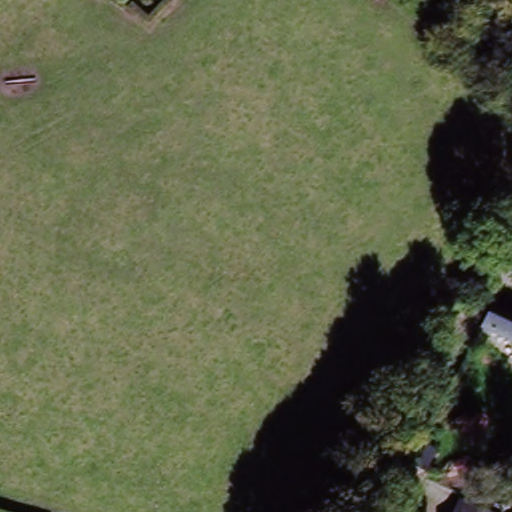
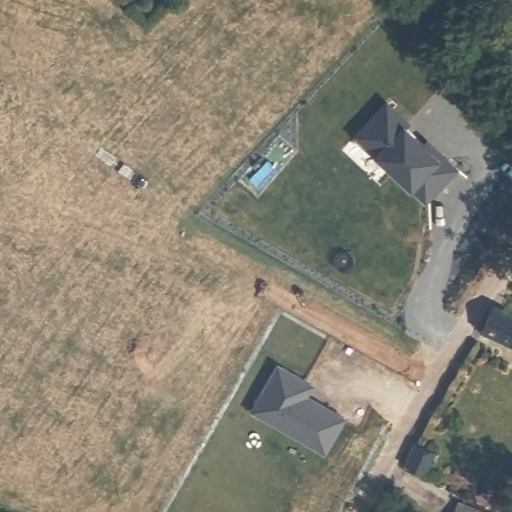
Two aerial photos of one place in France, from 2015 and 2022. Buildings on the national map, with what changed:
new [(388,114),(410,134),(407,137),(441,169),(443,166),(459,180),(428,214),(378,166),(385,159),(364,140),(388,114)]
unchanged [(507,351),(477,340),(498,304),(512,311),(512,353),(507,351)]
new [(280,375),(305,389),(300,400),(347,427),(328,463),(253,422),(280,375)]
unchanged [(438,452),(430,468),(407,457),(415,440),(438,452)]

